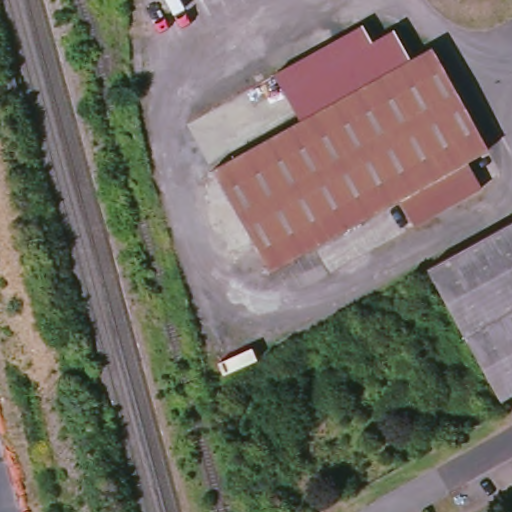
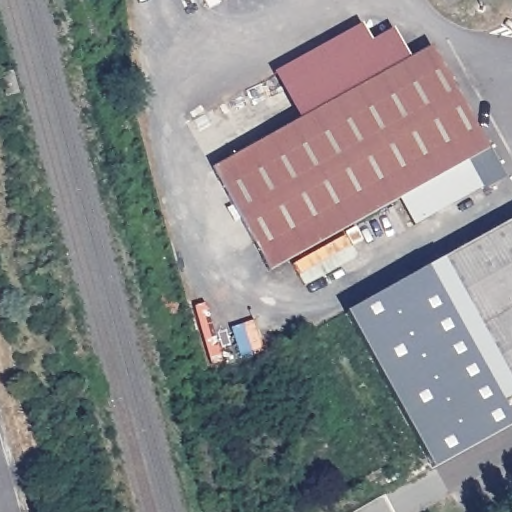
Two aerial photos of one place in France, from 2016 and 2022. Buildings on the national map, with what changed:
unchanged [(274,75),(362,27),(371,44),(394,32),(409,61),(432,49),(488,150),(467,162),(399,200),(268,272),(213,170),(299,122),(274,75)]
unchanged [(2,77),(12,74),(18,91),(8,94),(2,77)]
unchanged [(481,188),(413,226),(399,200),(467,162),(481,188)]
unchanged [(512,222),(512,395),(500,402),(427,269),(512,222)]
new [(427,269),(500,402),(512,423),(512,424),(433,468),(348,312),(427,269)]

